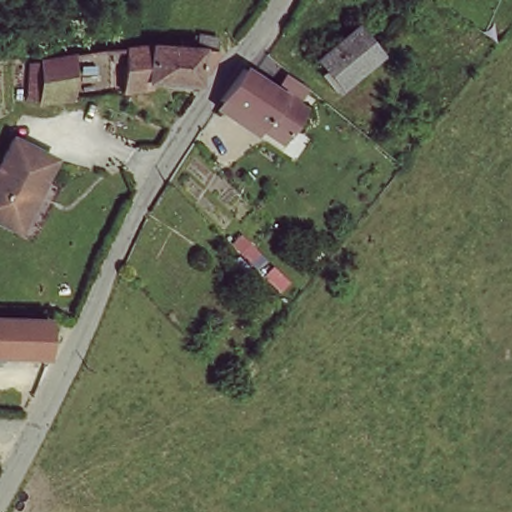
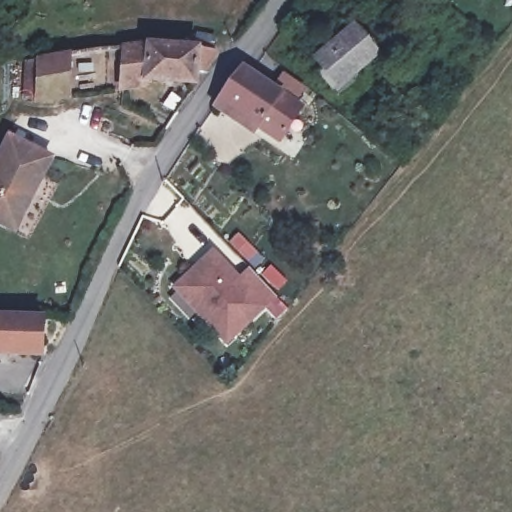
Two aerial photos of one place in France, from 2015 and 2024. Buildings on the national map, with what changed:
unchanged [(353,35),(376,62),(371,66),(334,95),(314,70),(339,47),(353,35)]
unchanged [(163,89),(140,86),(139,95),(118,99),(119,50),(142,49),(165,50),(163,89)]
unchanged [(207,57),(200,76),(189,76),(189,91),(163,89),(165,50),(207,57)]
unchanged [(70,64),(73,97),(43,100),(38,67),(70,64)]
unchanged [(288,90),(305,105),(295,118),(302,124),(279,152),(223,109),(246,80),(277,104),(288,90)]
unchanged [(11,229),(0,223),(0,163),(12,139),(55,161),(37,197),(17,232),(11,229)]
new [(197,316),(172,290),(209,254),(236,280),(246,270),(273,297),(232,337),(225,345),(197,316)]
unchanged [(58,319),(56,357),(0,356),(0,315),(58,319)]

